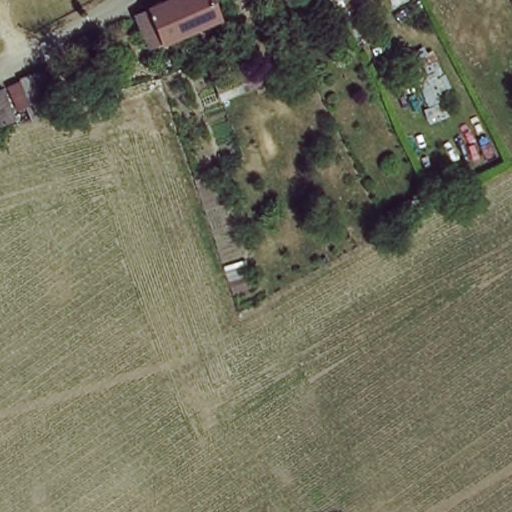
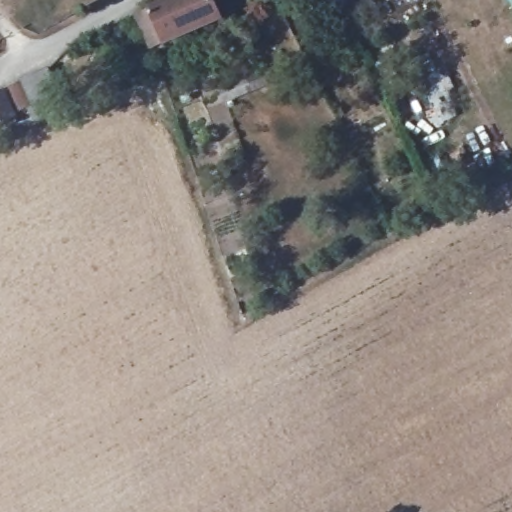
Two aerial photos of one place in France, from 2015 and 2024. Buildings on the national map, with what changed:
unchanged [(140,18),(148,14),(180,0),(218,0),(225,18),(166,43),(164,38),(150,43),(146,44),(136,19),(140,18)]
unchanged [(19,83),(47,71),(57,98),(28,110),(19,83)]
unchanged [(4,91),(16,119),(0,125),(0,93),(4,91)]

